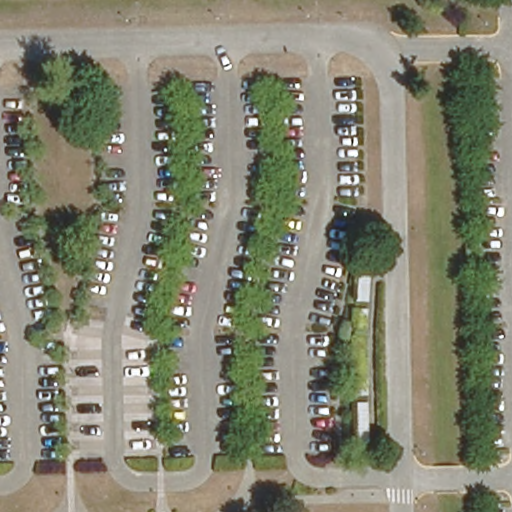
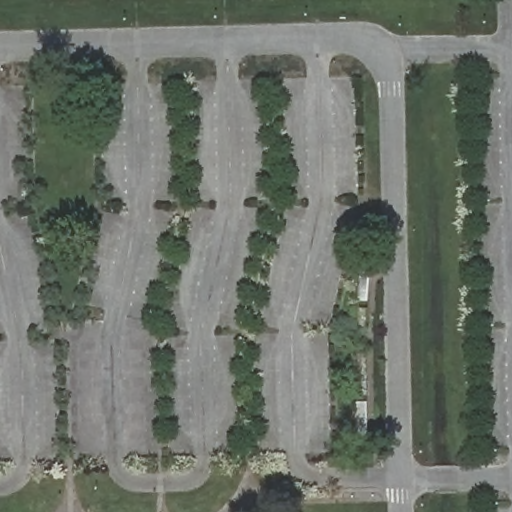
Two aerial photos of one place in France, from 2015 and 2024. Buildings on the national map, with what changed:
unchanged [(375,257),(372,297),(360,295),(362,257),(375,257)]
unchanged [(372,305),(370,324),(358,323),(359,303),(372,305)]
unchanged [(370,336),(371,395),(359,395),(357,336),(370,336)]
unchanged [(366,402),(367,442),(355,442),(353,403),(366,402)]

